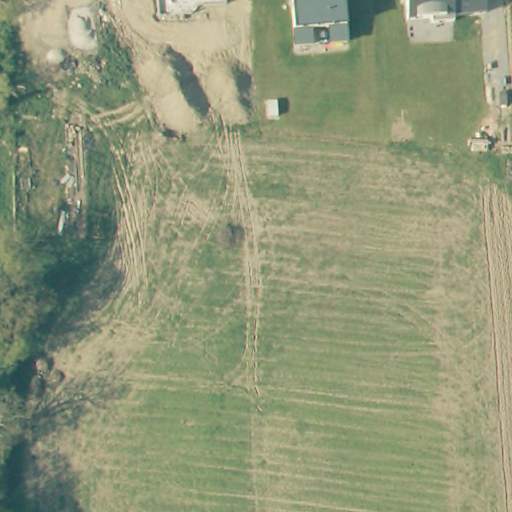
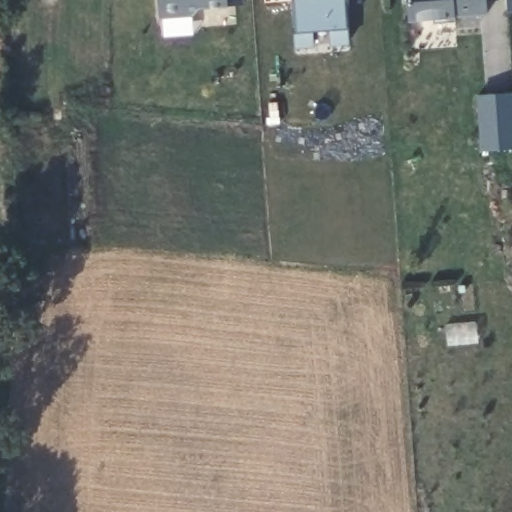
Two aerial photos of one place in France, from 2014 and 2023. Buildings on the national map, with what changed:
unchanged [(229,5),(196,8),(190,16),(162,18),(160,0),(244,0),(244,4),(229,5)]
unchanged [(292,0),(344,0),(347,26),(348,41),(329,44),(329,28),(311,29),(313,45),(295,48),(295,31),(292,0)]
unchanged [(484,0),(486,16),(406,23),(404,0),(484,0)]
new [(474,96),(511,93),(512,99),(512,149),(480,154),(474,96)]

